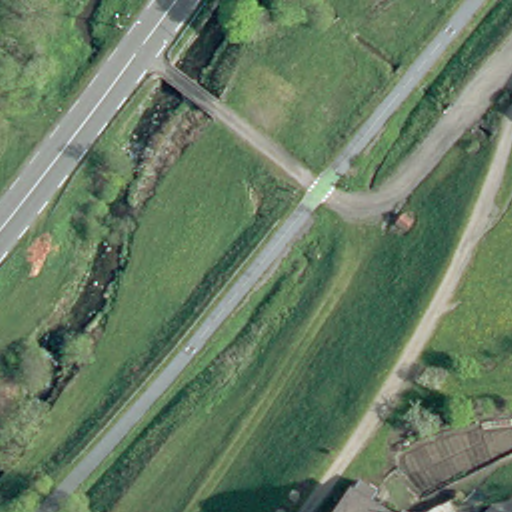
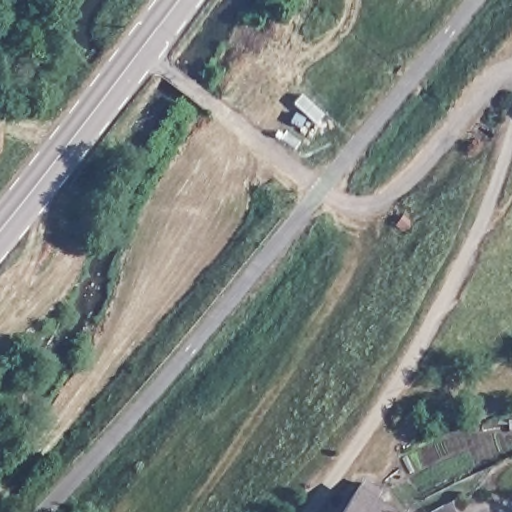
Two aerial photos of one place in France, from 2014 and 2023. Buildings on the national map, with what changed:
unchanged [(366,512),(344,512),(355,492),(372,501),(366,512)]

